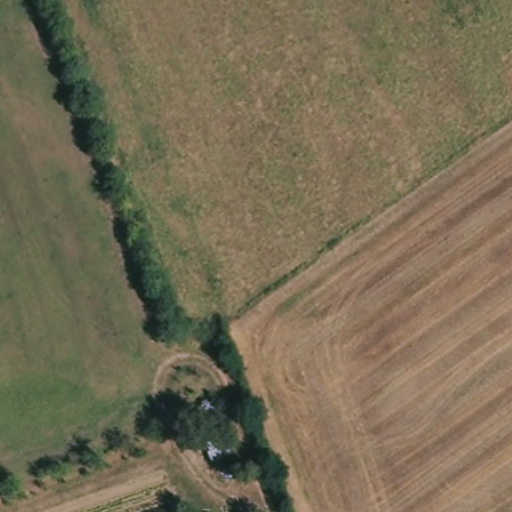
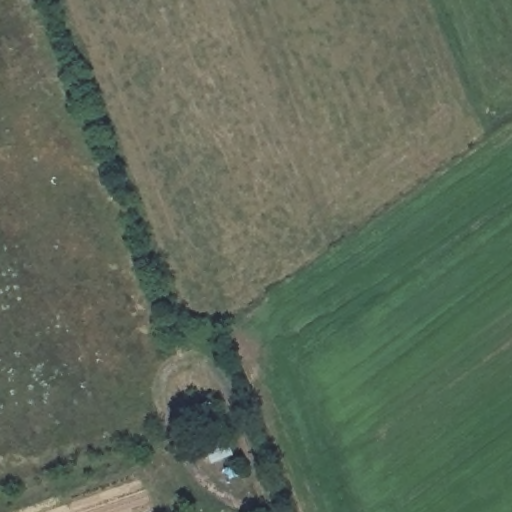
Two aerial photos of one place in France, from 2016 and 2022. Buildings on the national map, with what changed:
unchanged [(218,404),(229,454),(204,457),(190,410),(218,404)]

